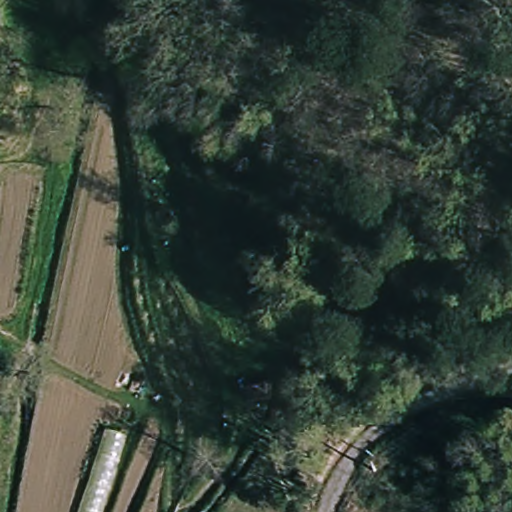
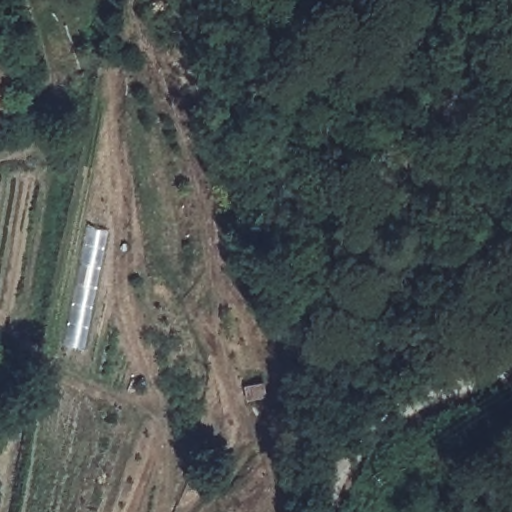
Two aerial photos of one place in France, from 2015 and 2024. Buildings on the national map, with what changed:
new [(97,234),(118,242),(83,347),(62,339),(97,234)]
new [(126,436),(101,512),(77,512),(105,429),(126,436)]

